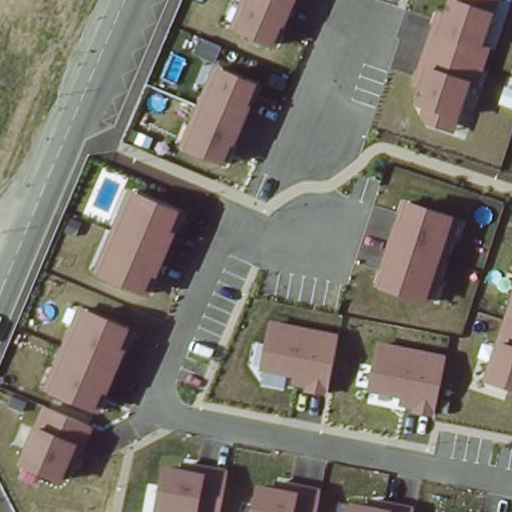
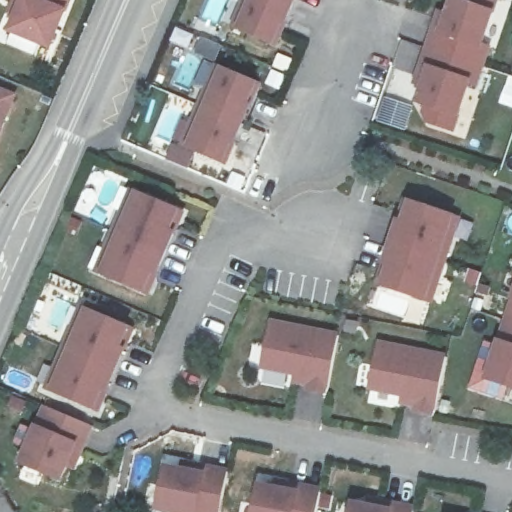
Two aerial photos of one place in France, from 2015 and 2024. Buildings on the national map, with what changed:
new [(10,28),(17,15),(10,11),(14,0),(67,0),(49,44),(10,28)]
unchanged [(240,29),(251,0),(293,0),(275,45),(240,29)]
unchanged [(493,48),(479,89),(471,86),(455,133),(427,123),(420,114),(423,104),(415,101),(419,86),(412,85),(437,11),(444,13),(449,0),(499,0),(487,45),(493,48)]
unchanged [(220,69),(256,83),(224,161),(191,146),(220,69)]
new [(12,94),(0,121),(0,89),(12,94)]
unchanged [(178,211),(145,289),(105,272),(137,194),(178,211)]
unchanged [(425,301),(376,284),(405,200),(453,217),(425,301)]
unchanged [(512,300),(512,388),(485,381),(512,300)]
unchanged [(127,327),(96,407),(56,390),(87,311),(127,327)]
unchanged [(339,333),(327,395),(306,392),(306,387),(293,385),(293,378),(260,373),(272,321),(339,333)]
unchanged [(435,413),(398,409),(400,397),(369,392),(377,343),(446,355),(435,413)]
unchanged [(94,426),(81,463),(72,457),(62,483),(20,465),(35,424),(43,405),(94,426)]
unchanged [(224,512),(156,512),(162,464),(185,468),(186,461),(231,468),(224,512)]
unchanged [(319,512),(252,512),(256,484),(278,487),(278,480),(323,487),(319,512)]
unchanged [(416,512),(349,512),(352,501),(372,505),(372,498),(418,506),(416,512)]

